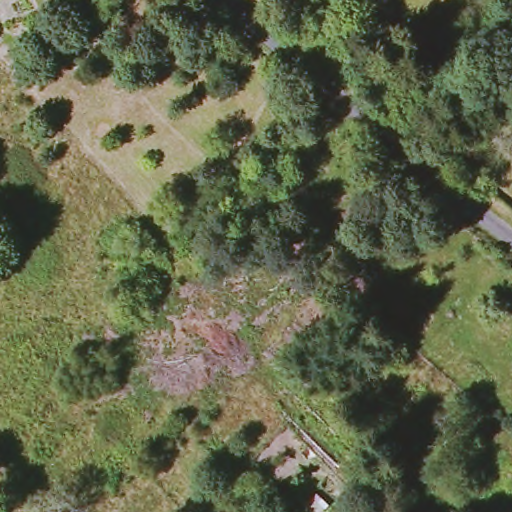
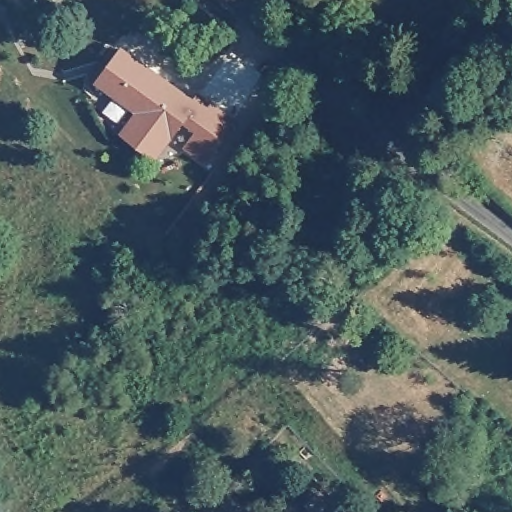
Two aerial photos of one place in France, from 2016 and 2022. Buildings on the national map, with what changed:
new [(198,91),(236,120),(205,163),(183,146),(195,130),(183,122),(157,158),(121,131),(136,110),(97,79),(123,45),(194,97),(198,91)]

